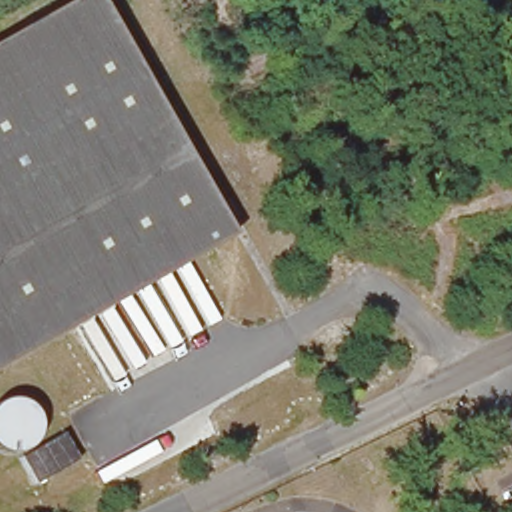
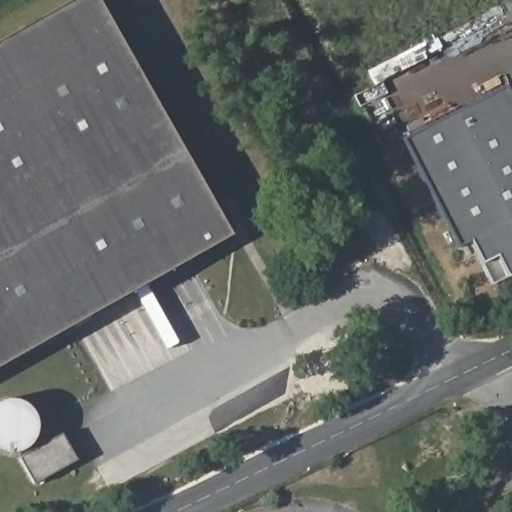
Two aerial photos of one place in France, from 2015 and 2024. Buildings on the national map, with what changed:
unchanged [(93,0),(224,237),(0,362),(0,41),(75,0),(93,0)]
new [(509,277),(493,285),(483,263),(470,239),(459,245),(403,138),(505,85),(512,99),(512,274),(509,277)]
unchanged [(34,484),(20,457),(63,433),(78,459),(34,484)]

